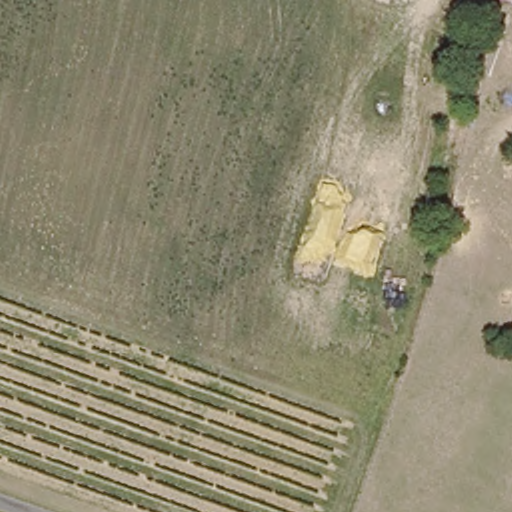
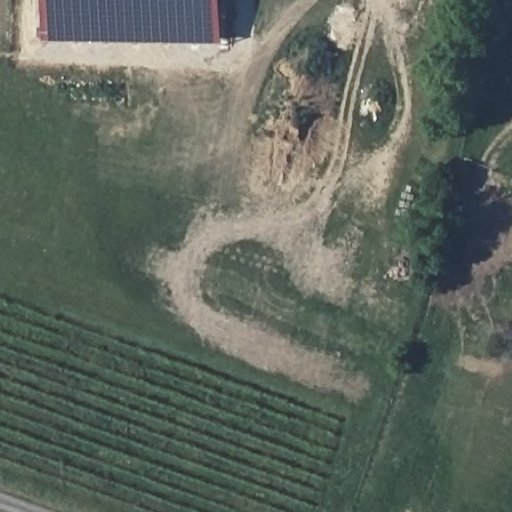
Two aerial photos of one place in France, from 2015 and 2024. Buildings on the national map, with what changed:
new [(45,41),(45,0),(227,0),(226,45),(45,41)]

